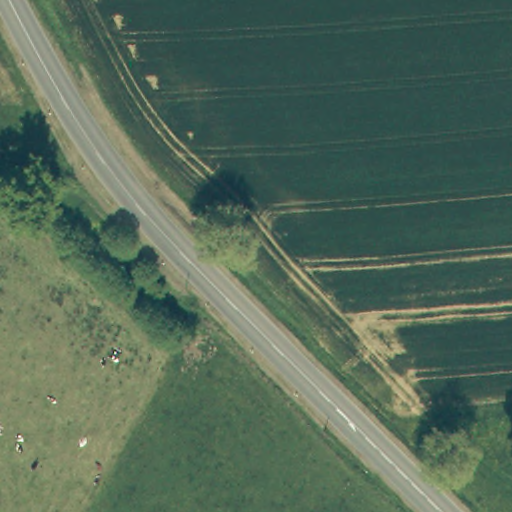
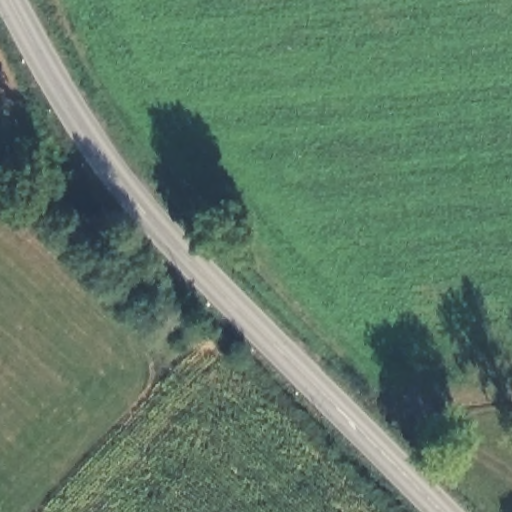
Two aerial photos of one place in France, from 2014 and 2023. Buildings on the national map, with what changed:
[]

